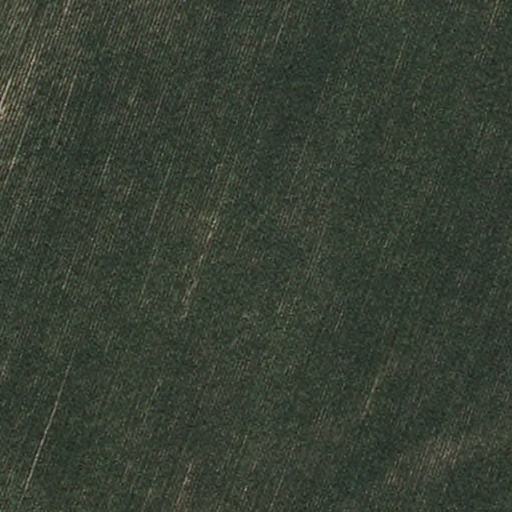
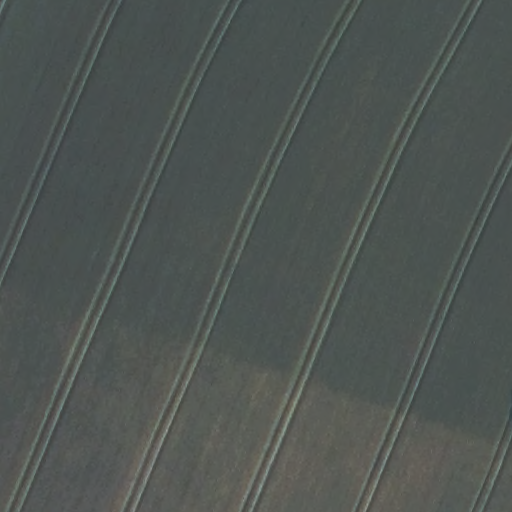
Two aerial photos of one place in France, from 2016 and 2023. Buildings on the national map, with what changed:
[]

